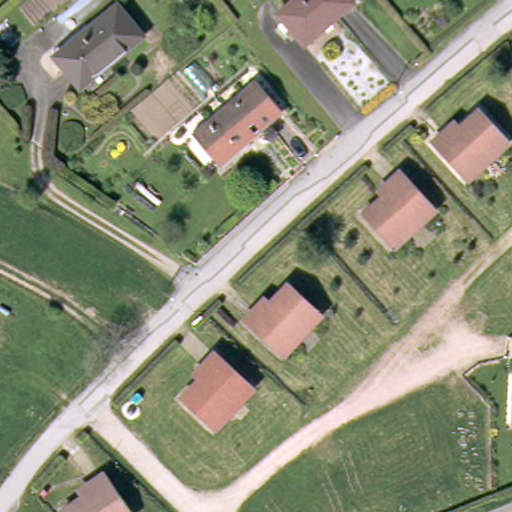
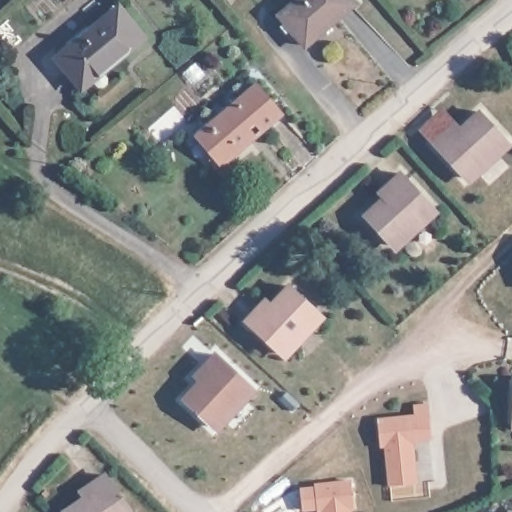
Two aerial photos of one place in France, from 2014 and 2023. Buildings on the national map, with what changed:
unchanged [(303,42),(277,12),(291,0),(348,0),(348,1),(303,42)]
unchanged [(85,85),(60,56),(121,6),(146,34),(85,85)]
unchanged [(205,148),(200,152),(193,144),(193,135),(203,125),(207,128),(256,85),(284,116),(240,155),(236,150),(221,160),(218,162),(205,148)]
unchanged [(439,142),(451,130),(457,135),(483,110),(511,139),(471,176),(439,142)]
unchanged [(366,216),(393,190),(388,184),(401,172),(434,207),(394,244),(366,216)]
unchanged [(285,352),(250,322),(262,308),(268,313),(293,286),(321,312),(285,352)]
unchanged [(178,399),(204,371),(198,366),(211,353),(244,386),(208,426),(178,399)]
unchanged [(512,376),(512,427),(511,427),(512,376)]
new [(418,482),(388,485),(384,447),(380,447),(377,417),(414,413),(414,416),(429,416),(430,439),(414,441),(418,482)]
unchanged [(90,483),(103,473),(133,512),(65,512),(94,492),(90,483)]
new [(353,477),(355,507),(351,508),(352,512),(319,512),(319,510),(301,511),(301,486),(314,485),(314,482),(353,477)]

